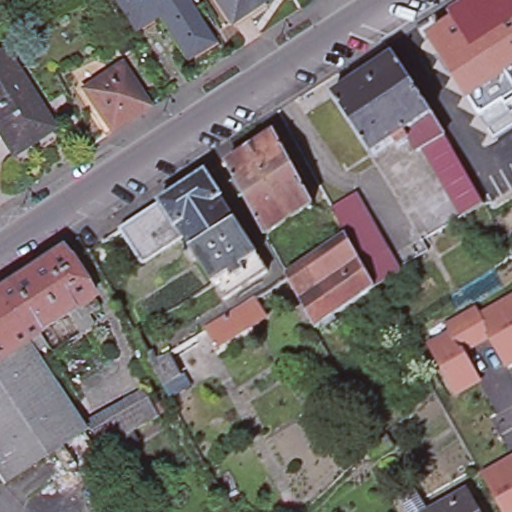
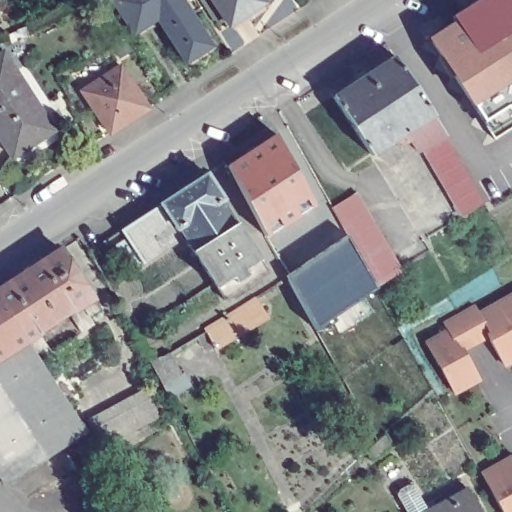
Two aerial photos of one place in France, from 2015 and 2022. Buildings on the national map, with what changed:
unchanged [(186,60),(157,18),(133,32),(112,0),(181,0),(210,43),(186,60)]
unchanged [(212,0),(260,0),(261,3),(227,25),(212,0)]
unchanged [(490,128),(483,119),(472,102),(470,104),(428,38),(455,21),(451,15),(475,0),(512,0),(512,126),(495,137),(490,128)]
unchanged [(430,109),(396,131),(400,137),(394,141),(390,135),(368,149),(330,91),(393,51),(415,87),(430,109)]
unchanged [(46,124),(6,150),(0,140),(0,53),(46,124)]
unchanged [(107,133),(80,91),(118,65),(146,108),(107,133)]
unchanged [(480,196),(460,208),(420,139),(440,126),(448,139),(480,196)]
unchanged [(310,204),(262,235),(248,209),(225,165),(273,133),(310,204)]
unchanged [(233,223),(191,251),(181,236),(160,202),(203,173),(220,198),(217,199),(232,221),(233,223)]
unchanged [(342,232),(328,209),(360,191),(401,267),(373,284),(342,232)]
unchanged [(140,263),(118,230),(160,202),(181,236),(140,263)]
unchanged [(265,271),(222,300),(210,282),(191,251),(233,223),(265,271)]
unchanged [(342,232),(373,284),(312,323),(281,271),(342,232)]
unchanged [(2,289),(58,254),(88,301),(35,336),(24,344),(73,421),(80,433),(0,487),(0,486),(0,291),(2,289)]
unchanged [(226,313),(252,296),(253,298),(262,311),(246,320),(249,325),(212,347),(203,330),(202,327),(226,313)]
unchanged [(451,335),(447,328),(478,310),(482,317),(512,300),(512,364),(505,368),(490,341),(466,354),(481,381),(456,395),(429,347),(451,335)]
unchanged [(186,372),(192,386),(169,398),(161,385),(150,361),(171,351),(181,374),(186,372)]
unchanged [(151,380),(170,413),(155,421),(126,436),(108,404),(137,387),(151,380)]
unchanged [(98,452),(80,419),(108,404),(126,436),(98,452)]
unchanged [(512,511),(509,512),(501,512),(479,473),(512,454),(512,511)]
unchanged [(464,488),(478,512),(421,512),(464,488)]

